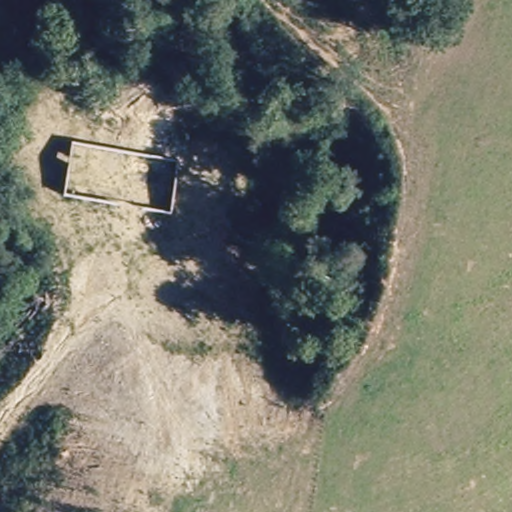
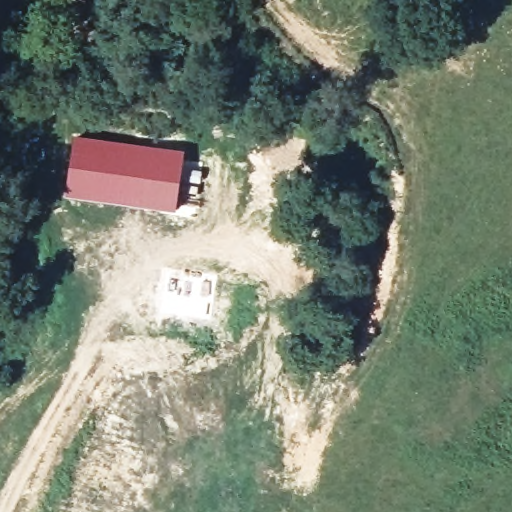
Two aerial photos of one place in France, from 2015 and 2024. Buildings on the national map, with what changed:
new [(65,195),(73,135),(184,151),(175,210),(65,195)]

